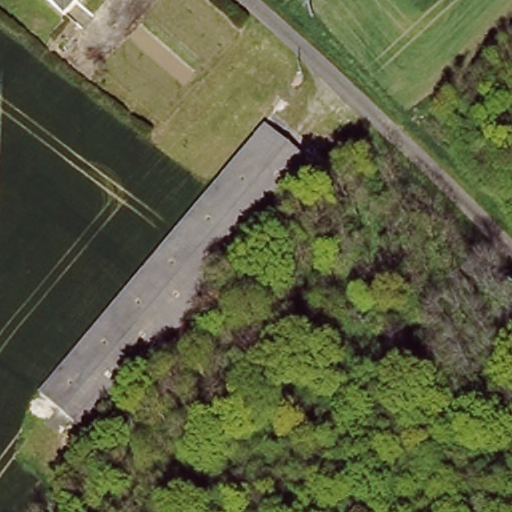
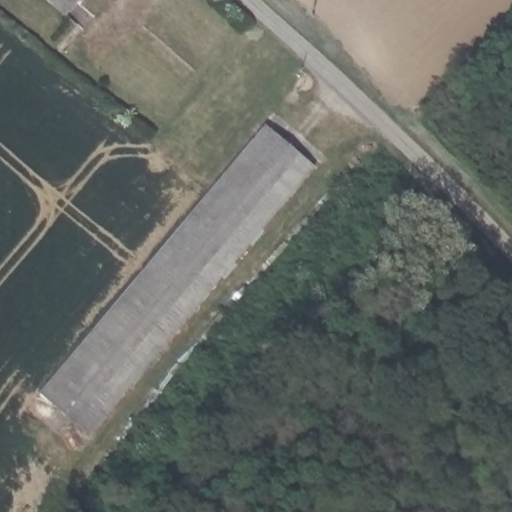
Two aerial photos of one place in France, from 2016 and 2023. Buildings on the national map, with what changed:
unchanged [(65,12),(50,0),(74,0),(65,12)]
unchanged [(208,195),(264,127),(315,170),(88,437),(39,395),(208,195)]

